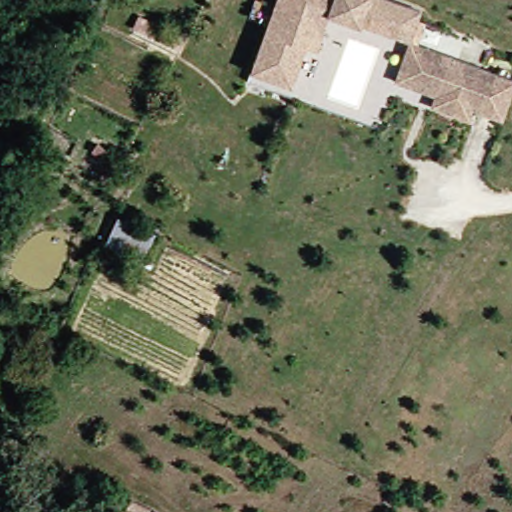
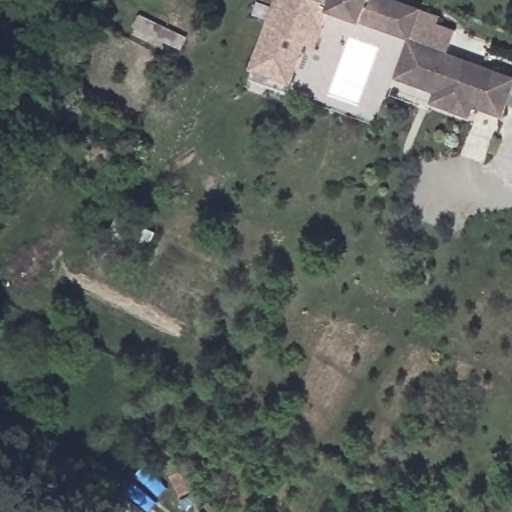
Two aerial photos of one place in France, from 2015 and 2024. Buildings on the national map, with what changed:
unchanged [(412,40),(410,45),(335,20),(321,54),(310,50),(296,88),(250,72),(279,0),(388,0),(423,14),(412,40)]
unchanged [(397,79),(410,45),(412,40),(415,41),(512,80),(512,99),(503,121),(475,109),(471,121),(432,105),(436,95),(430,92),(397,79)]

